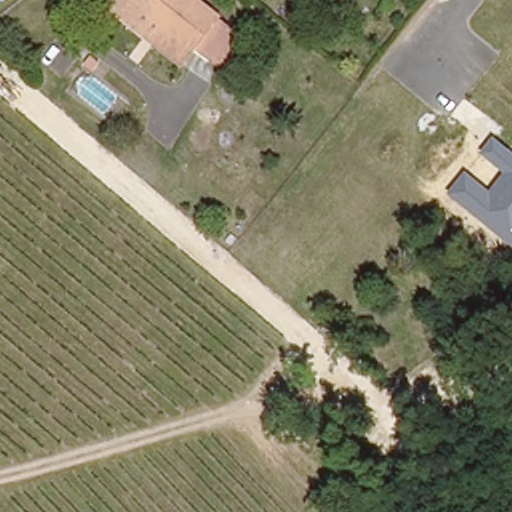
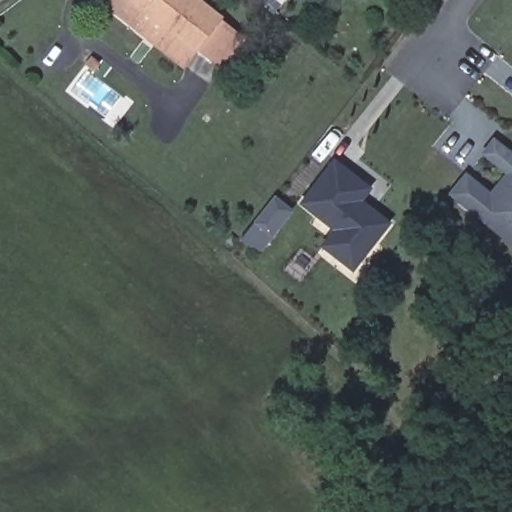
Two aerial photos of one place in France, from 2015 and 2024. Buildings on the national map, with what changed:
unchanged [(193,46),(143,2),(130,16),(112,0),(204,0),(222,15),(219,20),(239,36),(216,60),(197,42),(193,46)]
unchanged [(178,62),(127,19),(130,16),(143,2),(193,46),(178,62)]
unchanged [(448,195),(466,171),(492,192),(507,174),(480,152),(495,135),(512,149),(512,246),(448,195)]
new [(319,244),(328,232),(332,227),(298,201),(331,158),(367,186),(354,203),(365,212),(369,207),(386,220),(360,256),(351,267),(319,244)]

